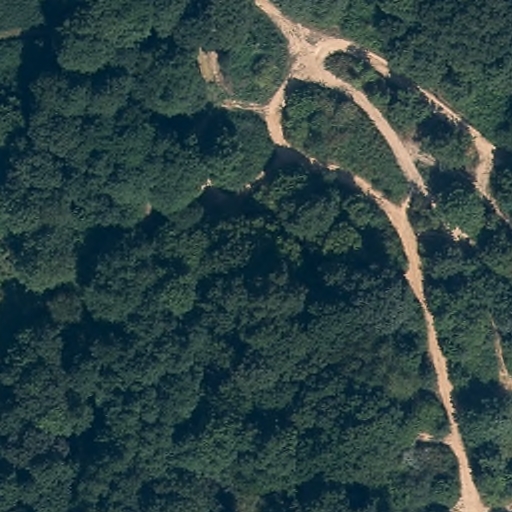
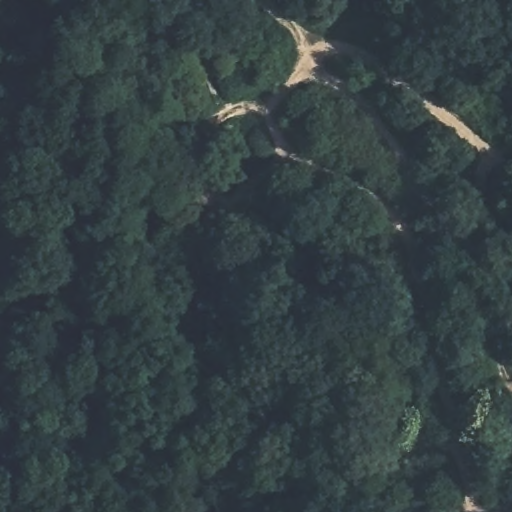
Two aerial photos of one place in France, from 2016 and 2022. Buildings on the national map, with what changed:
unchanged [(240,51),(267,58),(261,78),(237,69),(240,51)]
unchanged [(184,60),(177,113),(118,107),(121,53),(184,60)]

